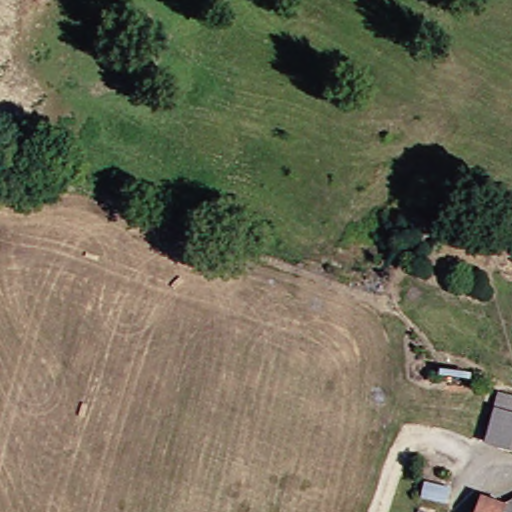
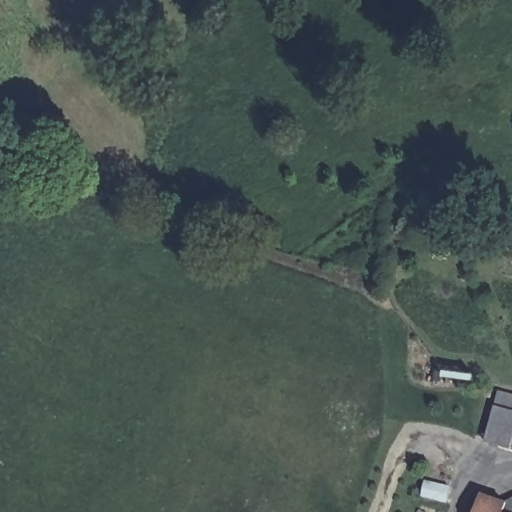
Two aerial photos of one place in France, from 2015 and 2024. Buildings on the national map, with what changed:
unchanged [(496,421),(499,402),(499,394),(512,396),(512,439),(502,447),(488,431),(496,421)]
unchanged [(512,494),(512,512),(491,512),(500,489),(512,494)]

